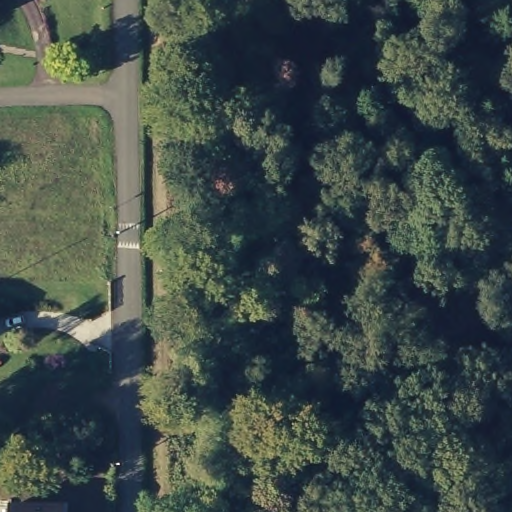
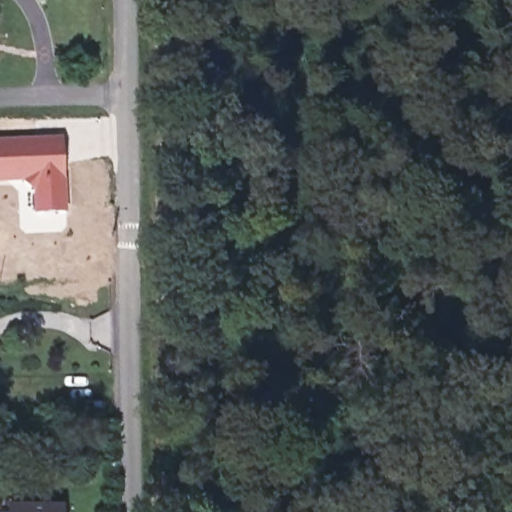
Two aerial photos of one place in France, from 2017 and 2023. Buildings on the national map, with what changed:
new [(64,213),(33,214),(33,191),(22,181),(0,181),(0,141),(62,140),(64,213)]
unchanged [(63,497),(63,512),(11,512),(11,497),(63,497)]

